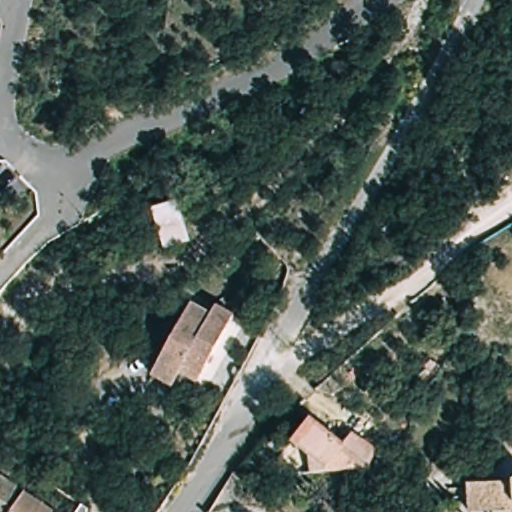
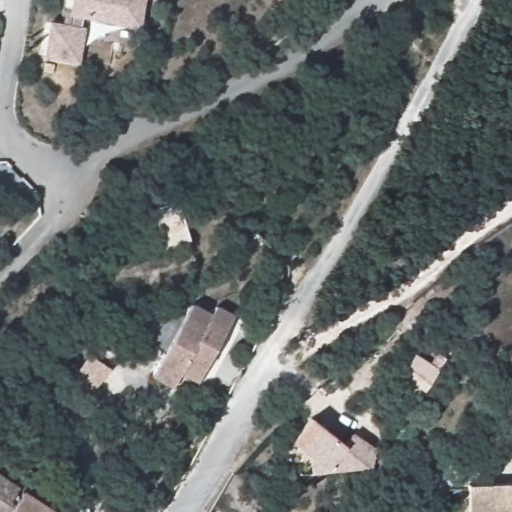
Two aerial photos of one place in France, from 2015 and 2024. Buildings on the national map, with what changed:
new [(57,18),(75,21),(79,0),(149,0),(145,20),(90,11),(88,23),(90,24),(84,56),(52,51),(57,18)]
unchanged [(157,363),(189,306),(209,319),(218,309),(239,322),(196,390),(178,379),(157,363)]
unchanged [(314,455),(297,443),(312,421),(312,422),(347,446),(352,438),(353,438),(357,440),(377,450),(372,468),(366,469),(330,473),(326,474),(317,475),(314,455)]
unchanged [(62,512),(0,512),(0,472),(62,512)]
unchanged [(486,490),(510,488),(509,482),(512,482),(512,512),(465,512),(463,493),(486,490)]
unchanged [(91,504),(89,512),(78,512),(85,501),(91,504)]

